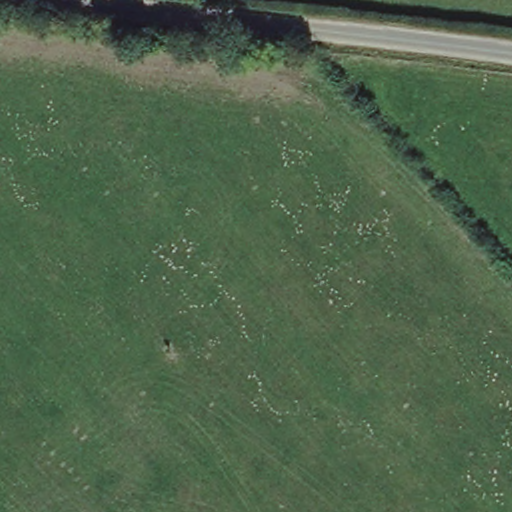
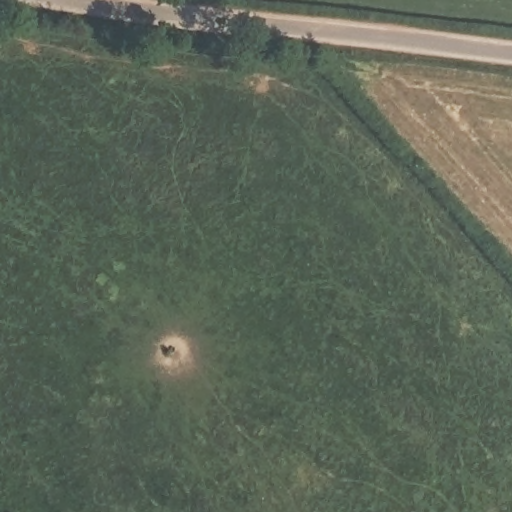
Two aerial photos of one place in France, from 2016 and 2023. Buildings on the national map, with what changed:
[]

